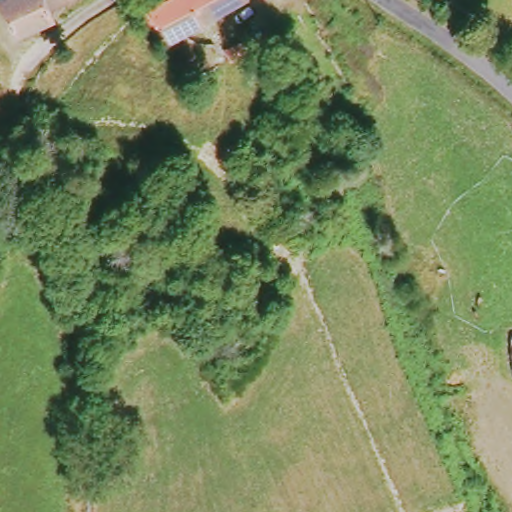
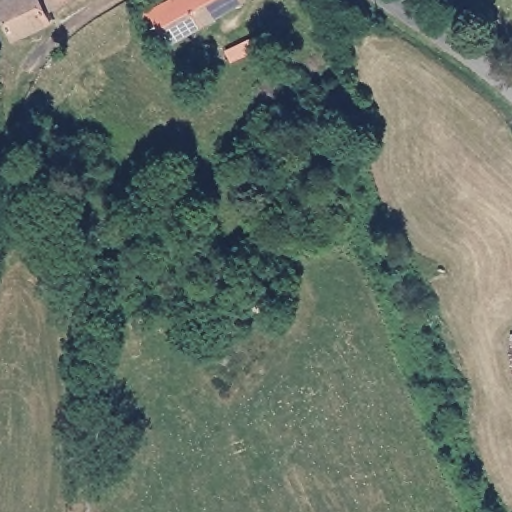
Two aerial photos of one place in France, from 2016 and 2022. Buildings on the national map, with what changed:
unchanged [(53,15),(16,35),(0,0),(58,0),(49,5),(53,15)]
unchanged [(173,0),(241,0),(221,13),(169,43),(151,13),(173,0)]

